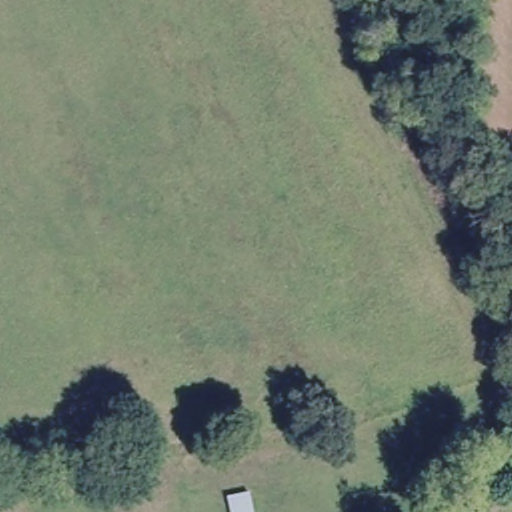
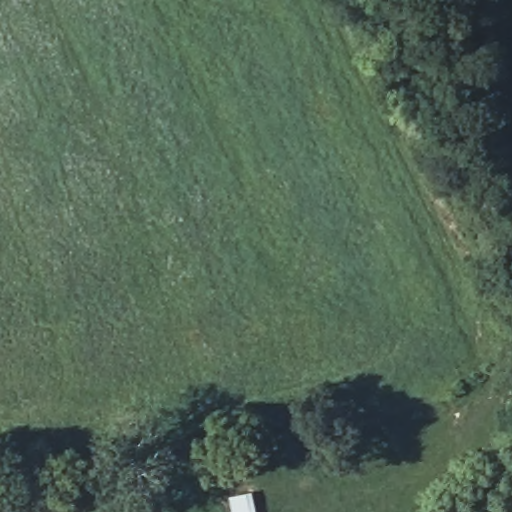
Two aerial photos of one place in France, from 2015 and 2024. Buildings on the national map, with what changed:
unchanged [(250,512),(225,512),(222,500),(247,496),(250,512)]

